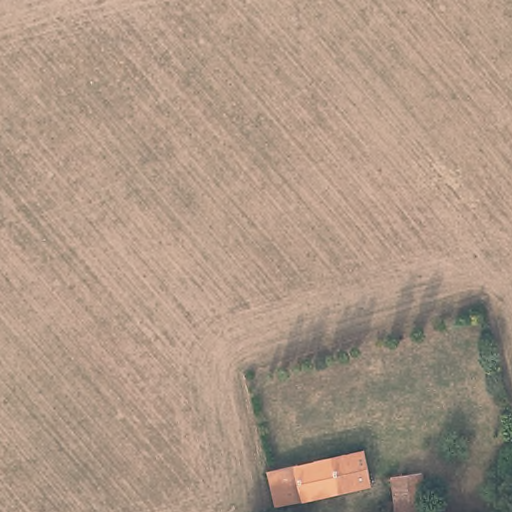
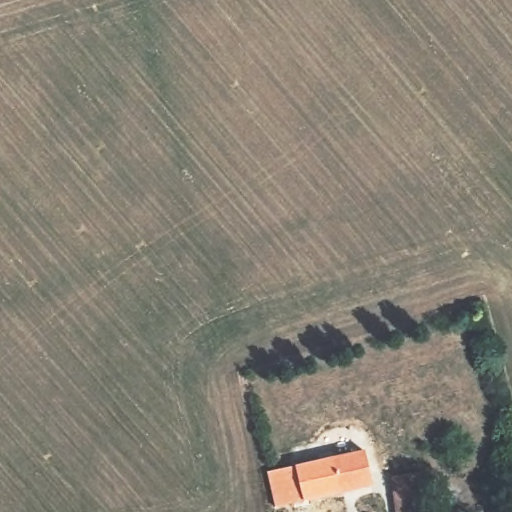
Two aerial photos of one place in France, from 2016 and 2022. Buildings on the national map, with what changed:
unchanged [(364,448),(370,480),(342,487),(334,454),(364,448)]
unchanged [(342,487),(305,497),(297,463),(334,454),(342,487)]
unchanged [(391,476),(424,473),(428,512),(396,512),(391,476)]

